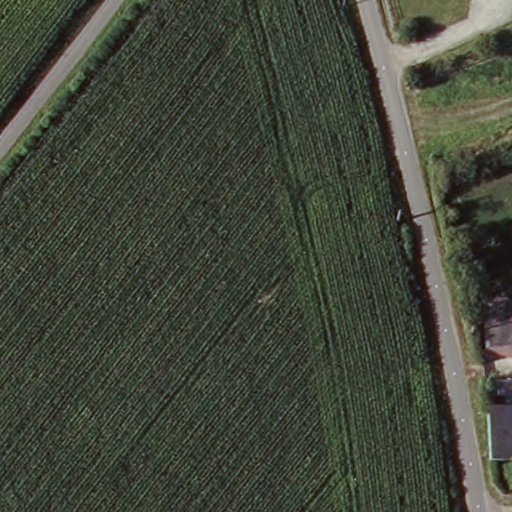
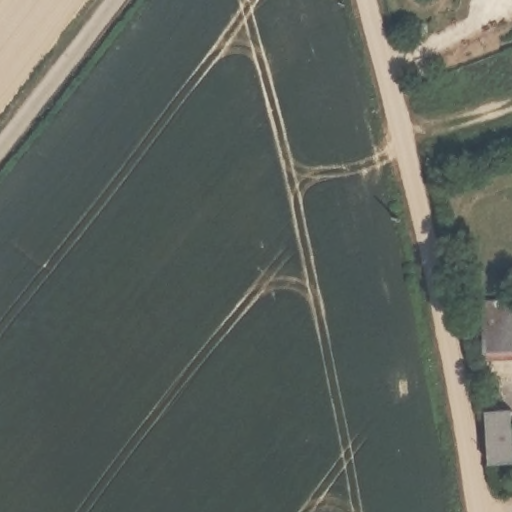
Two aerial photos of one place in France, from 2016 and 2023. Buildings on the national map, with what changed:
unchanged [(512,300),(512,360),(482,361),(481,302),(512,300)]
unchanged [(492,452),(488,413),(512,410),(512,465),(495,466),(492,452)]

